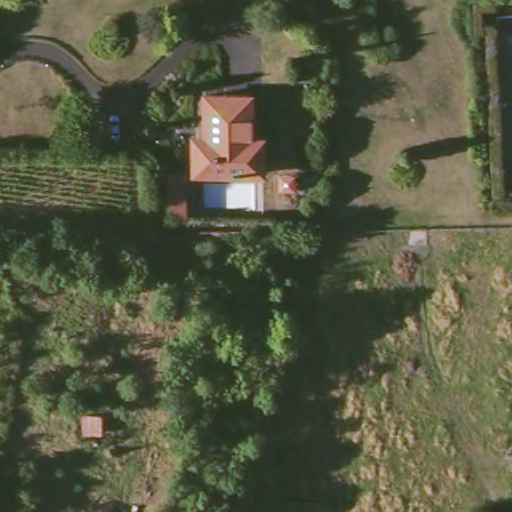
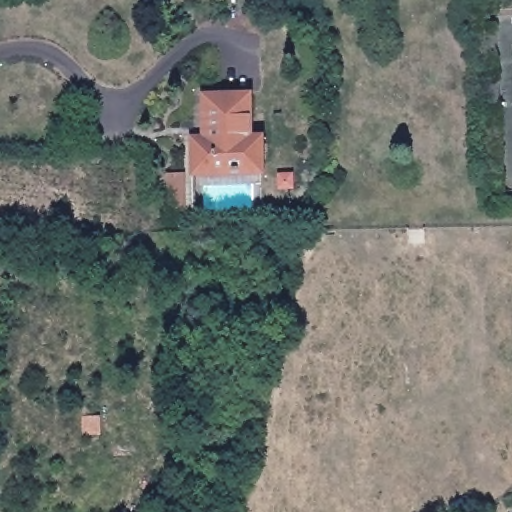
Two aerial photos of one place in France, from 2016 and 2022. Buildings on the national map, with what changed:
unchanged [(192,136),(204,136),(203,93),(254,93),(255,117),(255,133),(267,134),(267,176),(192,177),(192,136)]
unchanged [(170,175),(189,176),(188,222),(170,222),(170,175)]
unchanged [(279,175),(296,175),(297,192),(280,192),(279,175)]

